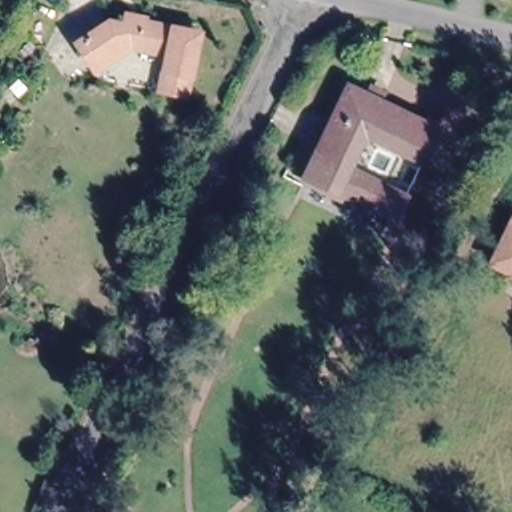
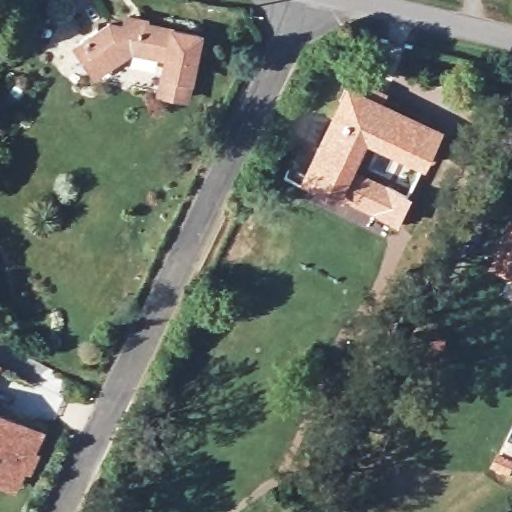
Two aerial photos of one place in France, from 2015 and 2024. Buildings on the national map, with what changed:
unchanged [(184,96),(159,91),(159,87),(96,74),(77,44),(109,23),(123,26),(126,16),(144,19),(144,23),(197,34),(184,96)]
unchanged [(343,76),(356,82),(433,120),(416,153),(360,126),(344,159),(400,186),(389,209),(319,175),(316,183),(296,174),(300,166),(343,76)]
unchanged [(512,226),(512,272),(494,263),(512,226)]
new [(0,483),(0,407),(45,429),(36,450),(40,453),(30,474),(24,471),(16,491),(0,483)]

